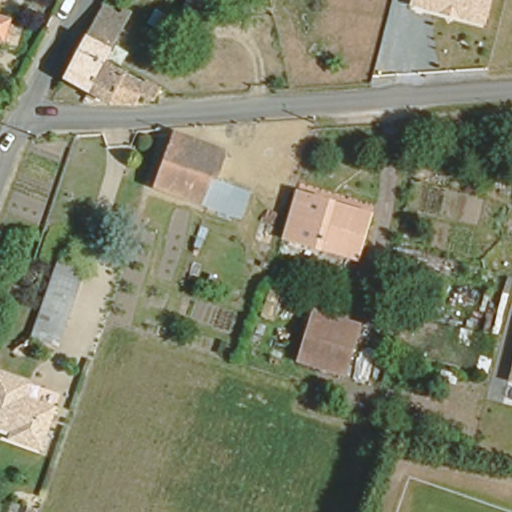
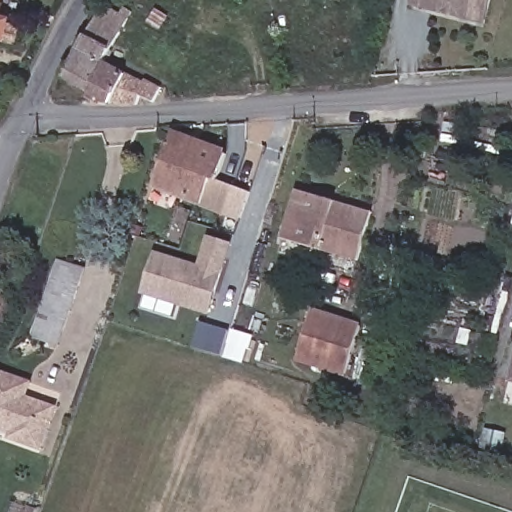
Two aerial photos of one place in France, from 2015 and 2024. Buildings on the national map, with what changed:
unchanged [(0,0),(2,0),(0,5),(0,0)]
unchanged [(104,0),(108,0),(121,8),(125,1),(133,6),(104,57),(88,85),(64,71),(104,0)]
unchanged [(180,7),(182,0),(215,0),(211,14),(180,7)]
unchanged [(410,2),(411,0),(489,0),(483,21),(459,15),(440,9),(410,2)]
unchanged [(15,19),(27,24),(22,40),(0,33),(0,7),(16,12),(15,19)]
unchanged [(88,85),(104,57),(143,78),(144,77),(146,74),(159,81),(152,94),(139,87),(133,100),(115,101),(88,85)]
unchanged [(174,127),(225,147),(216,172),(249,185),(240,213),(153,179),(174,127)]
unchanged [(296,188),(370,212),(356,258),(282,235),(296,188)]
new [(154,252),(198,266),(209,237),(229,242),(208,312),(142,291),(154,252)]
unchanged [(83,271),(57,344),(32,335),(58,262),(83,271)]
unchanged [(298,357),(313,308),(360,324),(343,373),(298,357)]
unchanged [(12,426),(0,421),(0,368),(29,379),(25,392),(54,403),(39,445),(10,434),(12,426)]
unchanged [(511,380),(512,377),(512,380),(511,380)]

